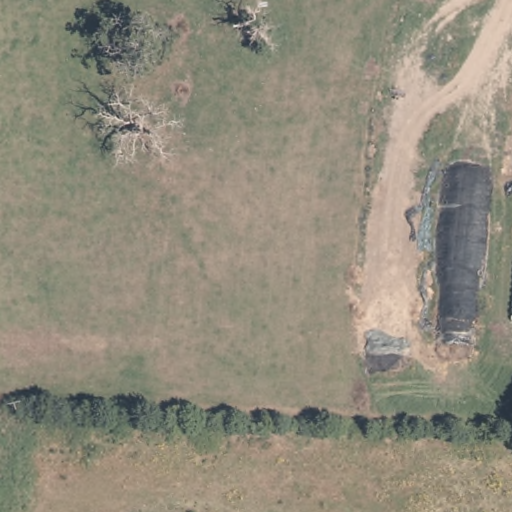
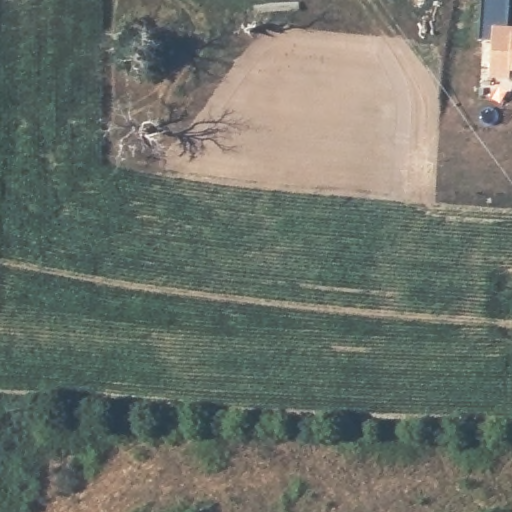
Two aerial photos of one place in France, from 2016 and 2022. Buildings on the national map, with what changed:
new [(491,38),(477,38),(479,0),(508,0),(507,25),(512,26),(512,71),(509,70),(508,79),(489,77),(491,38)]

